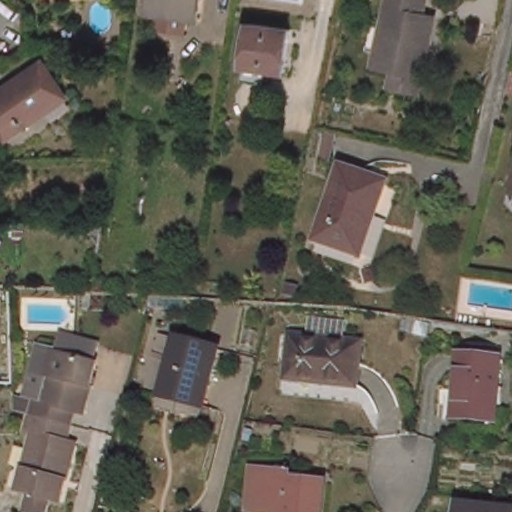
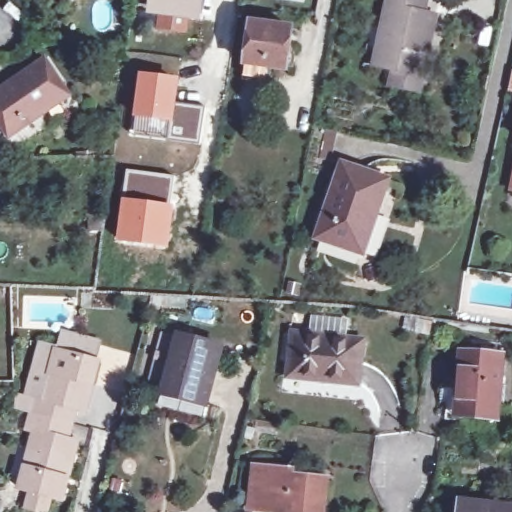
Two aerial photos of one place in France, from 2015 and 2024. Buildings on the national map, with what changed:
unchanged [(203,12),(194,11),(192,28),(165,25),(167,7),(158,6),(159,0),(204,0),(203,12)]
unchanged [(419,14),(430,16),(416,76),(368,64),(382,0),(422,0),(419,14)]
unchanged [(248,77),(250,61),(257,21),(300,27),(294,68),(293,68),(273,65),(270,80),(248,77)]
unchanged [(70,92),(23,122),(26,126),(7,137),(0,126),(0,90),(48,59),(70,92)]
new [(138,72),(180,77),(176,103),(172,122),(132,117),(138,72)]
unchanged [(512,76),(512,90),(509,90),(512,76)]
new [(132,117),(172,122),(176,103),(205,107),(200,145),(130,135),(132,117)]
unchanged [(382,175),(369,212),(373,214),(361,251),(320,235),(345,162),(382,175)]
new [(126,169),(175,176),(170,205),(121,198),(126,169)]
new [(121,198),(170,205),(175,206),(168,251),(113,242),(121,198)]
new [(61,328),(102,338),(97,358),(56,346),(61,328)]
unchanged [(363,338),(358,382),(291,375),(295,331),(363,338)]
demolished [(0,371),(0,333),(12,333),(12,366),(1,366),(1,371),(0,371)]
unchanged [(208,423),(166,412),(169,399),(153,395),(160,371),(168,338),(184,342),(227,353),(208,423)]
unchanged [(505,351),(498,416),(458,412),(461,384),(469,385),(475,347),(505,351)]
unchanged [(21,506),(25,490),(13,487),(28,432),(21,430),(30,397),(36,398),(50,350),(92,362),(80,411),(68,408),(64,425),(60,438),(71,441),(56,497),(43,495),(39,511),(21,506)]
unchanged [(288,480),(325,483),(322,512),(285,512),(285,510),(252,507),(256,469),(289,472),(288,480)]
unchanged [(512,512),(459,512),(460,502),(512,508),(512,512)]

